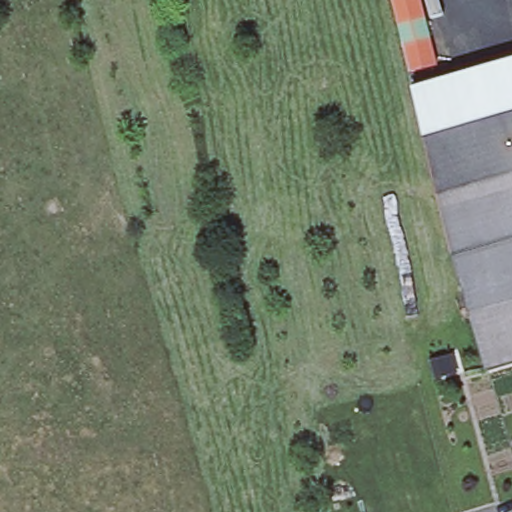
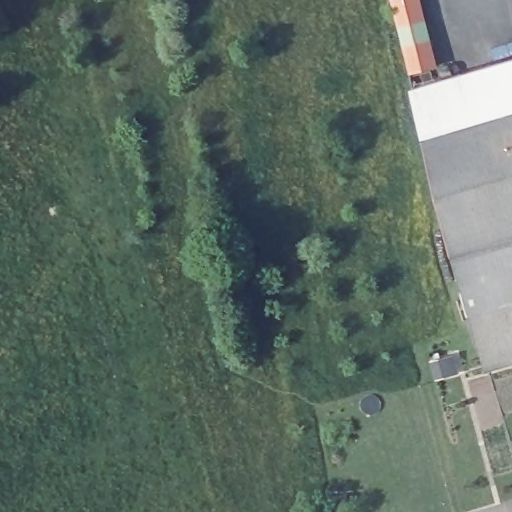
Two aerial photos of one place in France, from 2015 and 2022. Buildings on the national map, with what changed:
unchanged [(438,65),(412,71),(394,0),(422,0),(438,65)]
unchanged [(512,58),(512,111),(475,122),(463,73),(512,58)]
unchanged [(463,73),(475,122),(425,137),(413,87),(463,73)]
unchanged [(425,137),(475,122),(512,111),(512,364),(486,371),(485,368),(452,255),(445,223),(425,137)]

